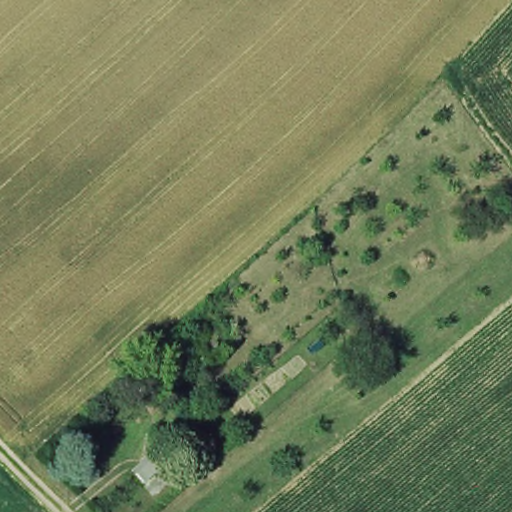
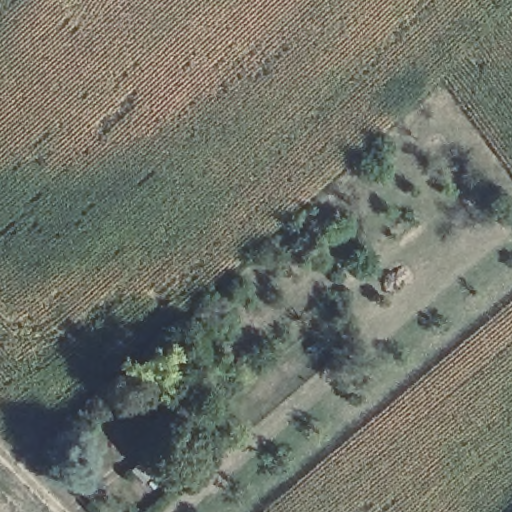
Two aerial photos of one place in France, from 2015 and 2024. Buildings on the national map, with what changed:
unchanged [(168,473),(170,475),(152,491),(149,488),(143,482),(140,479),(158,463),(162,467),(168,473)]

